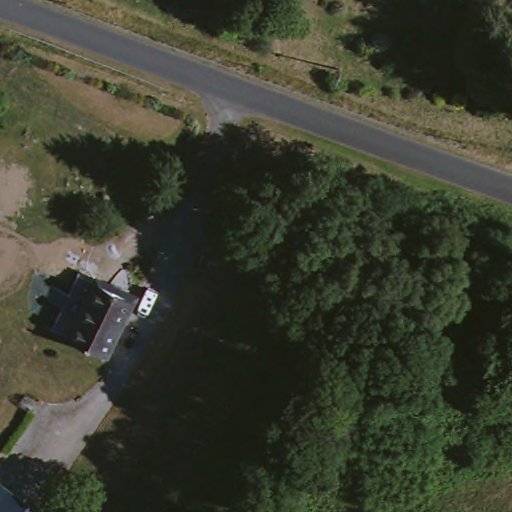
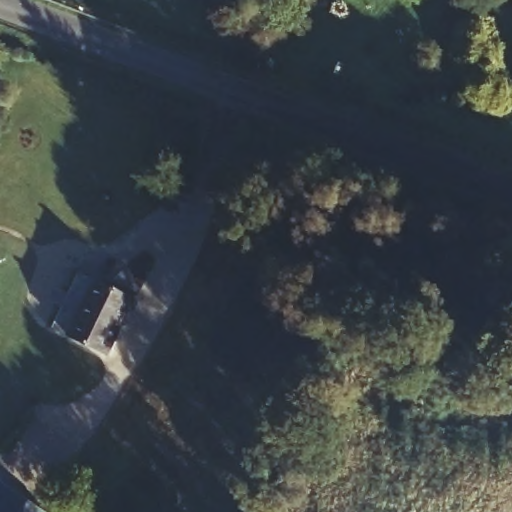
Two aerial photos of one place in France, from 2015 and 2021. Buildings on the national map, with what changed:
unchanged [(136,299),(109,356),(77,342),(68,338),(94,280),(104,285),(136,299)]
unchanged [(50,512),(0,512),(0,478),(11,486),(50,512)]

